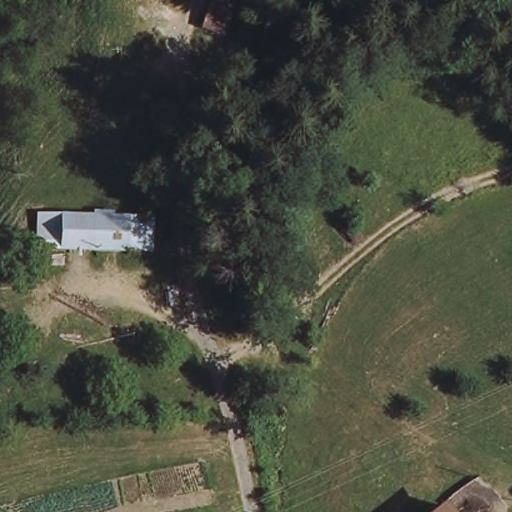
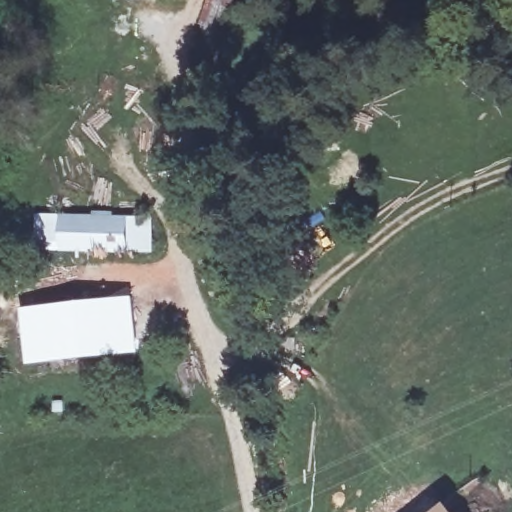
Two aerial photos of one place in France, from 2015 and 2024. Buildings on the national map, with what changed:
unchanged [(162,0),(191,0),(190,4),(162,0)]
unchanged [(152,211),(153,250),(57,250),(56,216),(152,211)]
new [(125,301),(130,351),(25,362),(20,313),(125,301)]
unchanged [(444,512),(435,512),(440,507),(444,512)]

